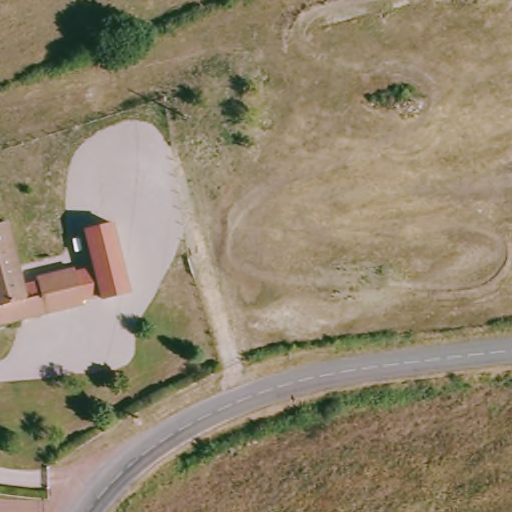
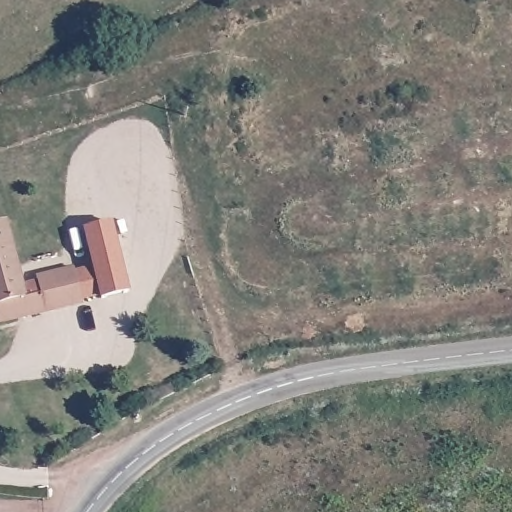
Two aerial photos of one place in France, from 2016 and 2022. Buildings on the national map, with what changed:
unchanged [(82,231),(111,223),(130,292),(100,299),(81,304),(72,269),(91,266),(82,231)]
unchanged [(39,295),(35,278),(72,269),(81,304),(0,323),(0,225),(5,224),(24,299),(39,295)]

